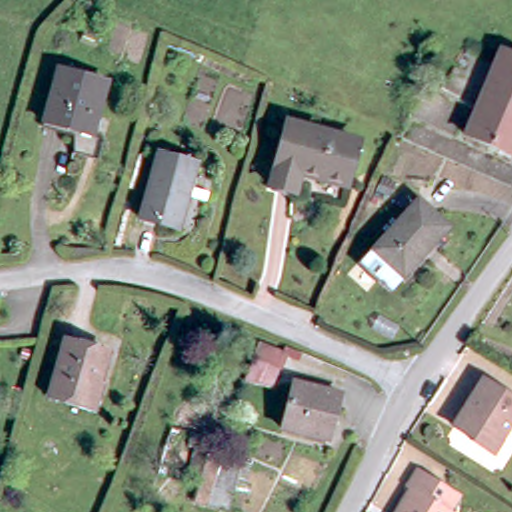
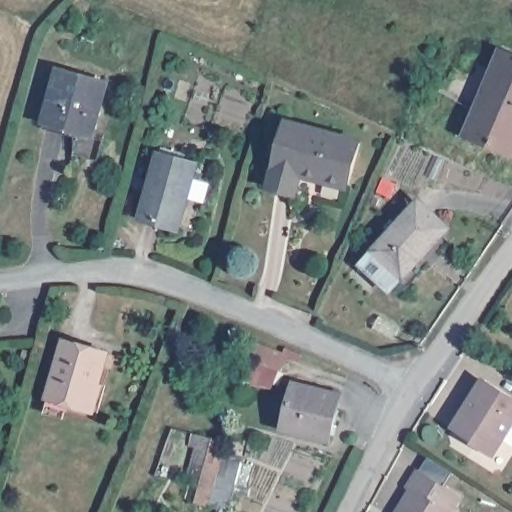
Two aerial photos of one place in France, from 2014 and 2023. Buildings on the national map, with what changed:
unchanged [(512,53),(512,155),(498,149),(488,145),(465,135),(477,104),(493,66),(500,48),(512,53)]
unchanged [(93,136),(45,123),(60,70),(108,84),(93,136)]
unchanged [(347,176),(298,165),(294,185),(272,179),(287,116),(357,133),(347,176)]
unchanged [(180,230),(143,221),(160,155),(197,165),(180,230)]
unchanged [(417,196),(446,221),(402,270),(375,245),(417,196)]
unchanged [(89,406),(47,392),(64,336),(107,349),(89,406)]
unchanged [(293,381),(263,369),(270,353),(300,366),(293,381)]
unchanged [(475,392),(473,391),(482,377),(512,397),(512,420),(493,450),(472,437),(473,434),(454,421),(465,404),(468,405),(475,392)]
unchanged [(332,443),(286,431),(298,386),(343,397),(332,443)]
unchanged [(223,478),(230,460),(250,468),(242,486),(232,512),(227,512),(212,505),(223,478)]
unchanged [(410,487),(405,485),(415,470),(453,493),(443,508),(449,512),(394,512),(399,505),(410,487)]

